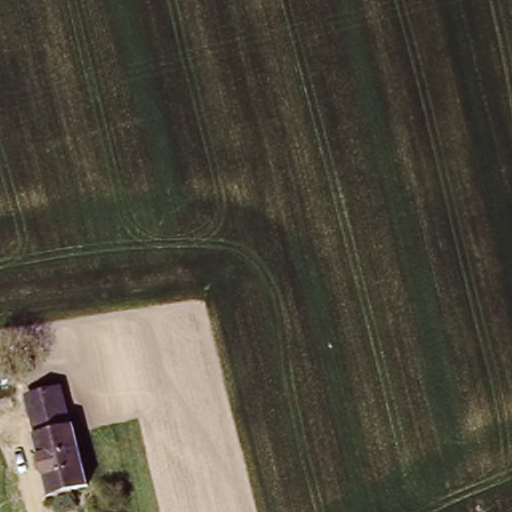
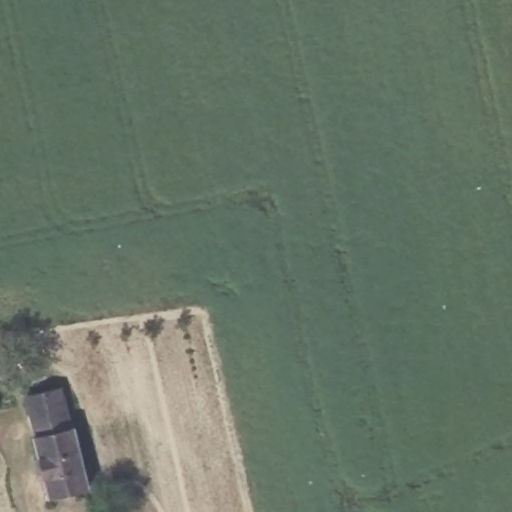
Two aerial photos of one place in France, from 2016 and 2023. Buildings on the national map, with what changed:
unchanged [(37,435),(39,434),(30,393),(60,386),(72,423),(76,422),(89,483),(52,492),(37,435)]

